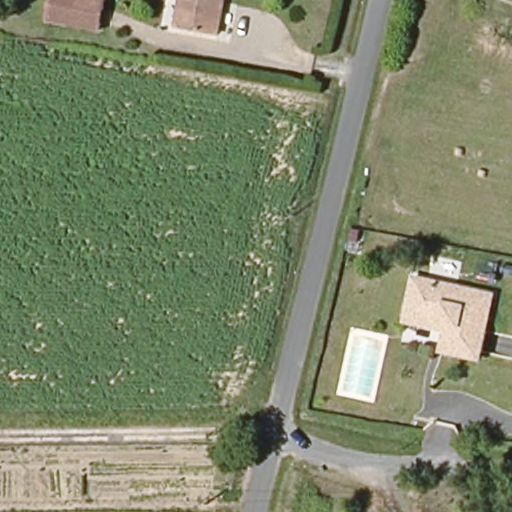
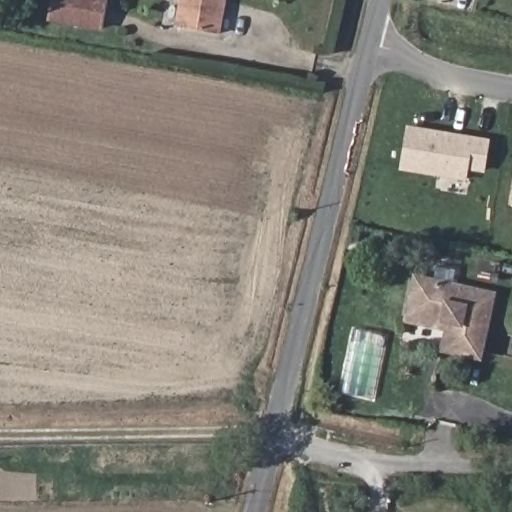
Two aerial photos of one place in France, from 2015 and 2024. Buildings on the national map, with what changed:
unchanged [(98,30),(50,21),(54,0),(103,0),(98,30)]
unchanged [(210,31),(171,24),(175,0),(216,0),(210,31)]
new [(403,160),(408,132),(487,144),(482,172),(403,160)]
new [(512,191),(512,207),(510,207),(512,191)]
unchanged [(407,311),(414,274),(495,291),(482,356),(444,350),(448,329),(405,320),(407,311)]

